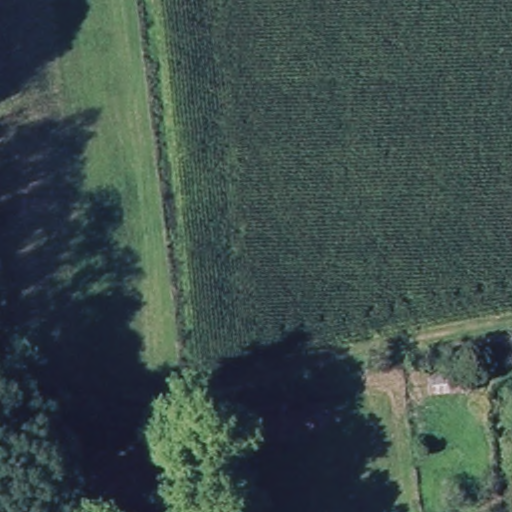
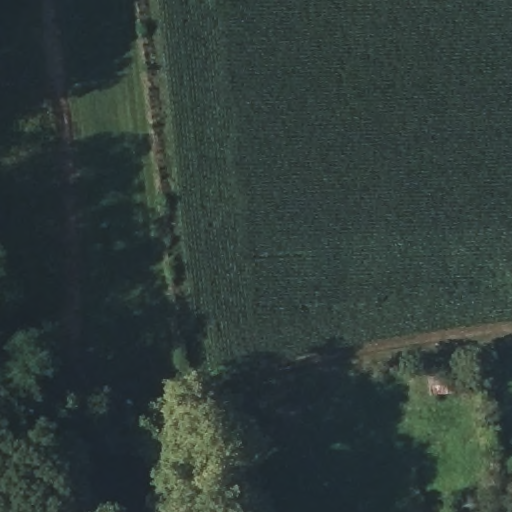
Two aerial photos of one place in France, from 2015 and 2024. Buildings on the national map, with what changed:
unchanged [(425,396),(424,374),(472,370),(472,388),(425,396)]

